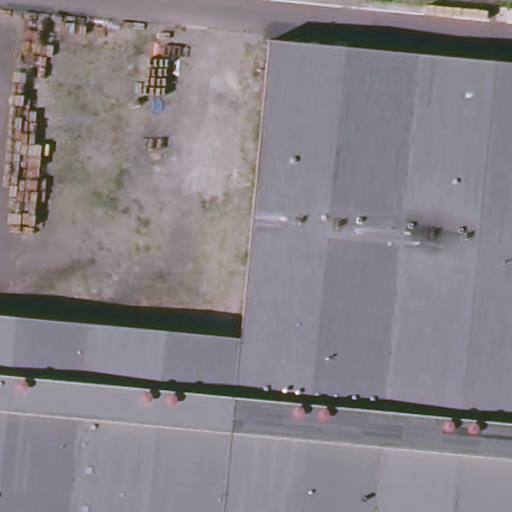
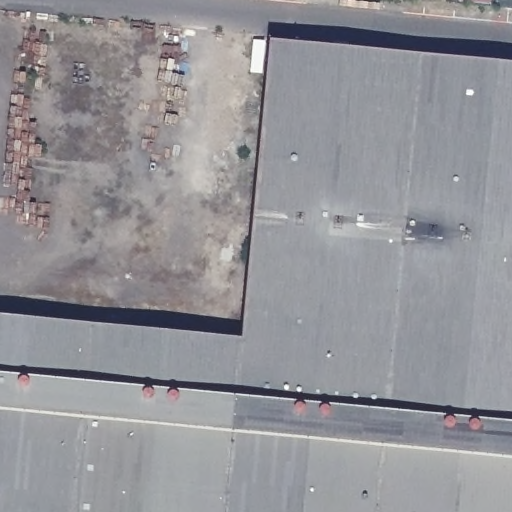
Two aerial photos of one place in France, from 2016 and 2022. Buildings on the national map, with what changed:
unchanged [(512,65),(512,126),(251,158),(263,41),(512,65)]
unchanged [(233,337),(251,158),(512,126),(512,512),(310,512),(233,337)]
unchanged [(310,512),(0,512),(0,313),(233,337),(310,512)]

